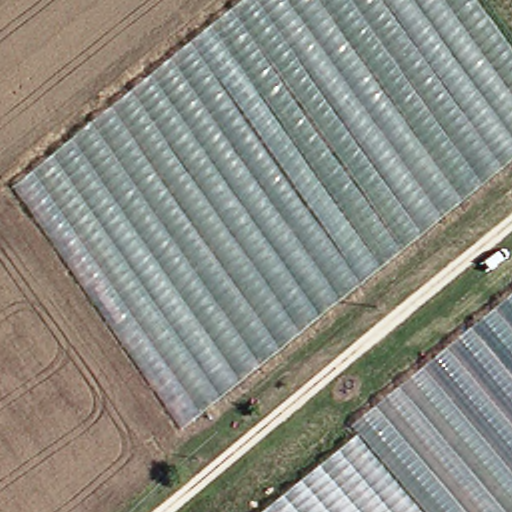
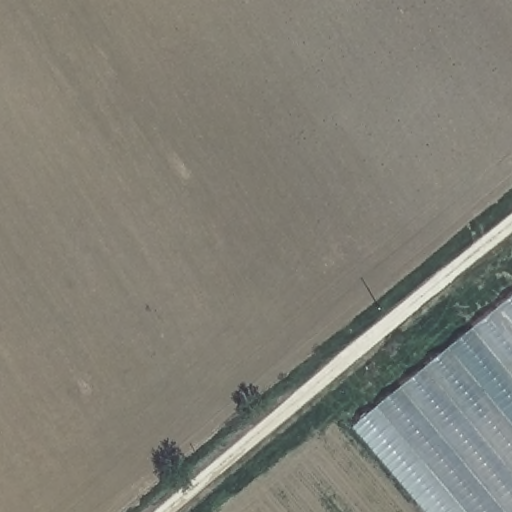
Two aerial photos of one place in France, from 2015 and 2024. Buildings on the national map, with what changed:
new [(184,427),(15,184),(242,0),(477,0),(512,48),(512,159),(184,427)]
unchanged [(425,512),(352,426),(512,294),(512,512),(425,512)]

